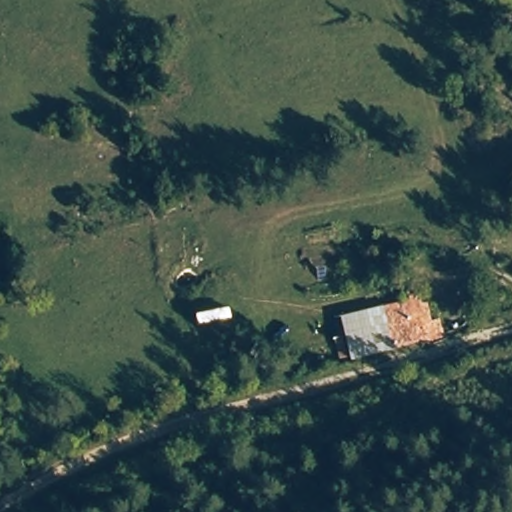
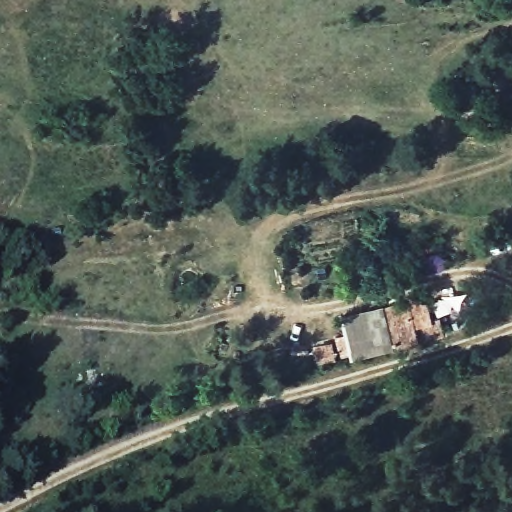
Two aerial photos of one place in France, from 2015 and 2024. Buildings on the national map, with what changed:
unchanged [(427,299),(433,322),(442,319),(444,335),(418,342),(349,355),(341,314),(427,299)]

